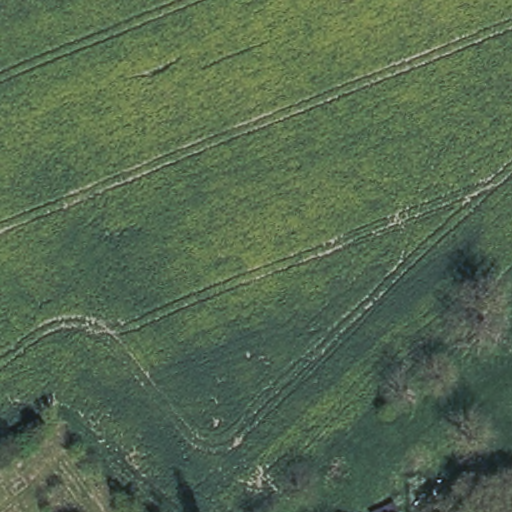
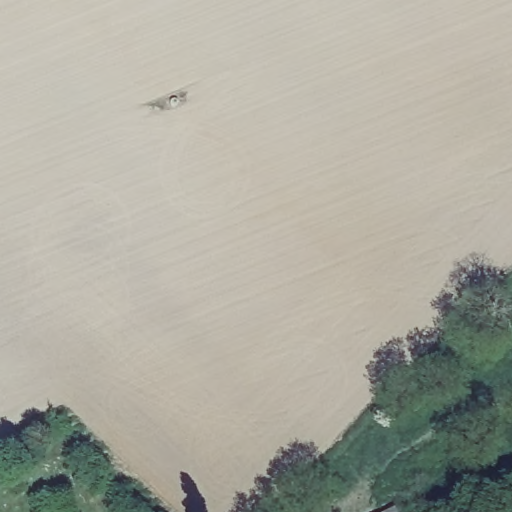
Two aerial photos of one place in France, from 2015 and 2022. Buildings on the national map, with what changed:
unchanged [(395,504),(399,512),(376,512),(378,511),(395,504)]

